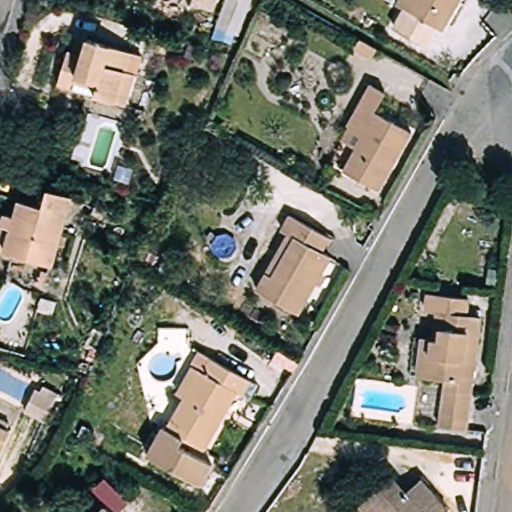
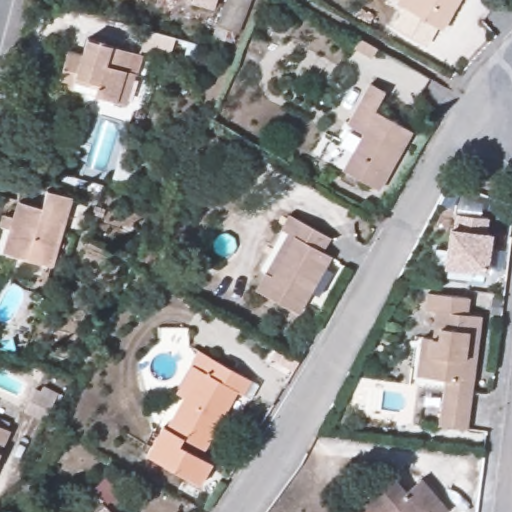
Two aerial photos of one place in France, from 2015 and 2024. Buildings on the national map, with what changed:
unchanged [(196,7),(197,0),(220,0),(217,12),(196,7)]
unchanged [(398,0),(457,0),(442,26),(436,22),(425,42),(394,24),(406,5),(398,0)]
unchanged [(92,96),(72,89),(56,84),(67,51),(81,55),(87,37),(131,50),(141,54),(134,74),(124,106),(92,96)]
unchanged [(344,172),(356,149),(343,141),(350,127),(347,125),(370,85),(385,92),(374,112),(412,132),(379,192),(344,172)]
unchanged [(0,253),(0,231),(5,216),(13,219),(17,202),(40,208),(45,190),(69,197),(49,267),(0,253)]
unchanged [(257,291),(288,234),(281,230),(289,216),(329,238),(321,252),(331,258),(299,315),(257,291)]
new [(450,232),(453,232),(455,216),(487,220),(485,236),(490,237),(485,273),(445,268),(450,232)]
unchanged [(440,422),(446,376),(417,372),(422,332),(434,334),(437,307),(425,307),(428,290),(469,295),(467,312),(480,313),(466,425),(440,422)]
unchanged [(147,457),(163,426),(167,428),(185,398),(177,393),(193,366),(204,372),(211,359),(250,381),(242,396),(237,393),(204,450),(184,438),(181,444),(214,462),(200,486),(147,457)]
unchanged [(56,401),(47,421),(27,411),(36,391),(56,401)]
unchanged [(10,432),(0,452),(0,428),(10,432)]
unchanged [(362,499),(393,473),(406,487),(420,476),(448,508),(443,512),(373,512),(362,499)]
unchanged [(96,498),(108,512),(79,512),(96,498)]

